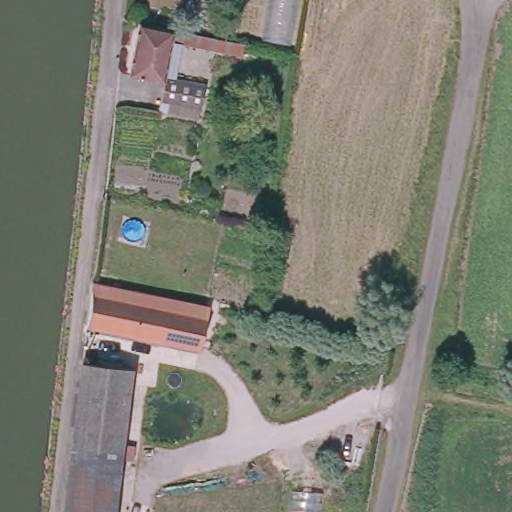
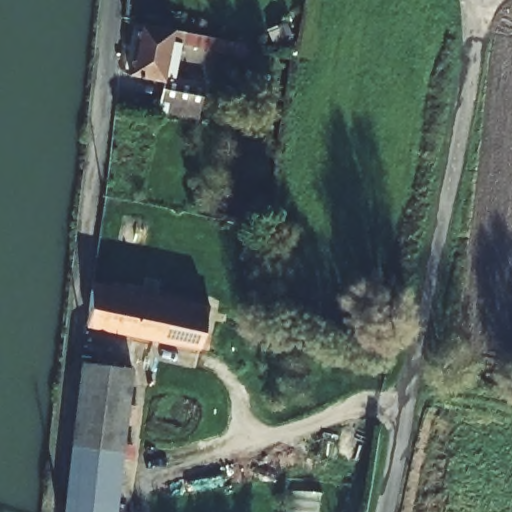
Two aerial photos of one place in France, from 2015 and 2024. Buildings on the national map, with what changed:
unchanged [(244,43),(242,57),(172,43),(166,76),(207,84),(202,110),(160,102),(164,82),(130,75),(140,23),(244,43)]
unchanged [(205,305),(208,305),(209,306),(209,309),(200,351),(85,327),(91,282),(205,305)]
unchanged [(132,367),(116,512),(63,512),(82,361),(132,367)]

